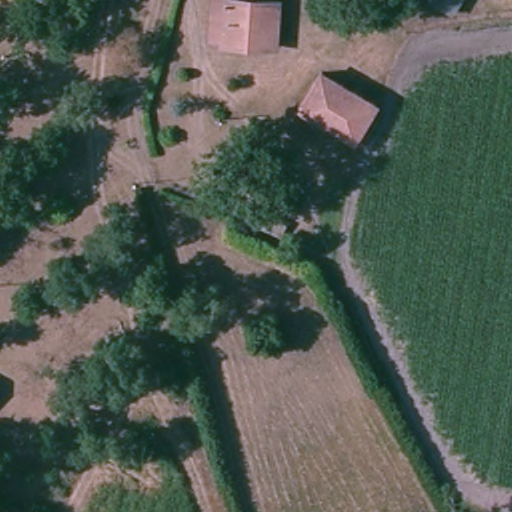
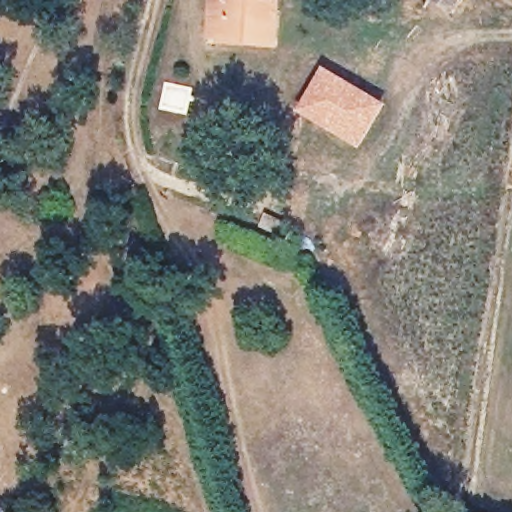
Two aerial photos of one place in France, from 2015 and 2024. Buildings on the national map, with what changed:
unchanged [(202,45),(207,0),(280,0),(275,50),(202,45)]
unchanged [(427,9),(431,0),(457,0),(448,19),(427,9)]
unchanged [(352,139),(294,110),(310,72),(368,100),(352,139)]

